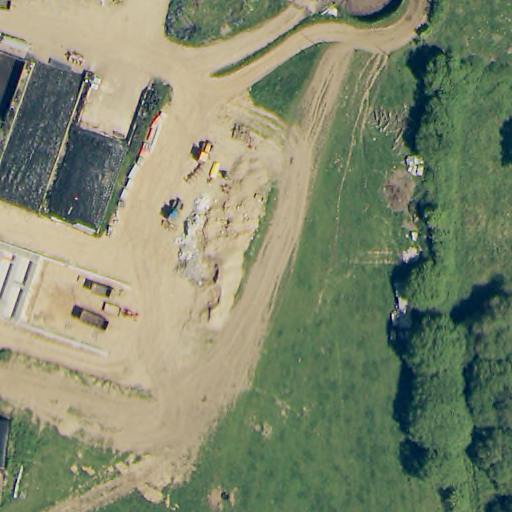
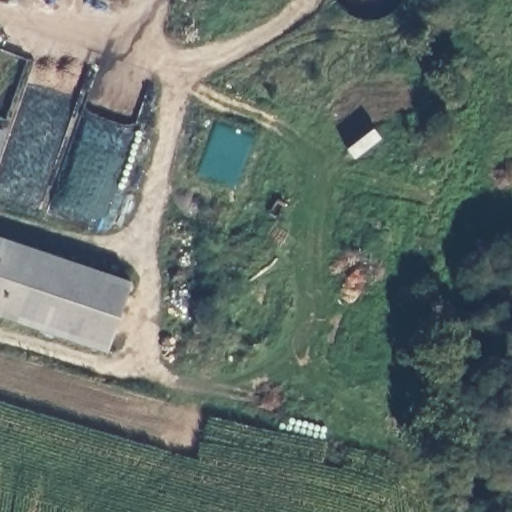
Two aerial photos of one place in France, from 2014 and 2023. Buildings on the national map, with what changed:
new [(0,145),(0,130),(4,132),(0,145)]
new [(106,353),(0,316),(0,236),(131,280),(106,353)]

